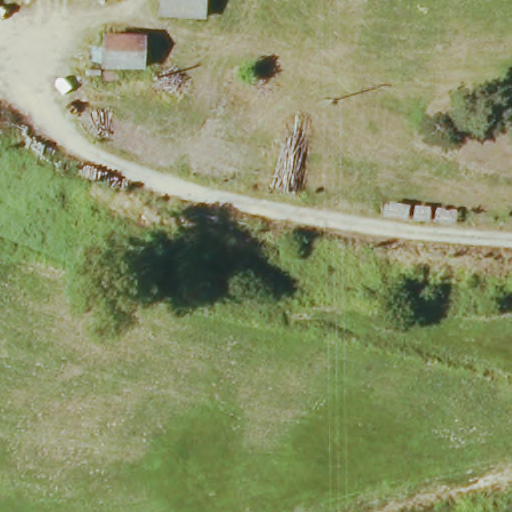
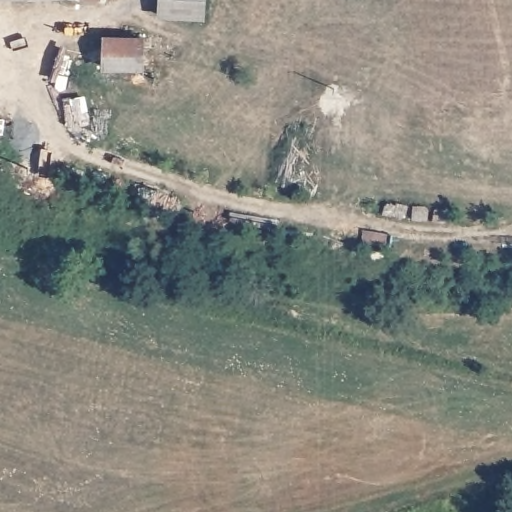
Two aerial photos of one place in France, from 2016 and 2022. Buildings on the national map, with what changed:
unchanged [(159,0),(205,0),(204,16),(158,15),(159,0)]
unchanged [(148,71),(107,71),(110,37),(149,40),(148,71)]

